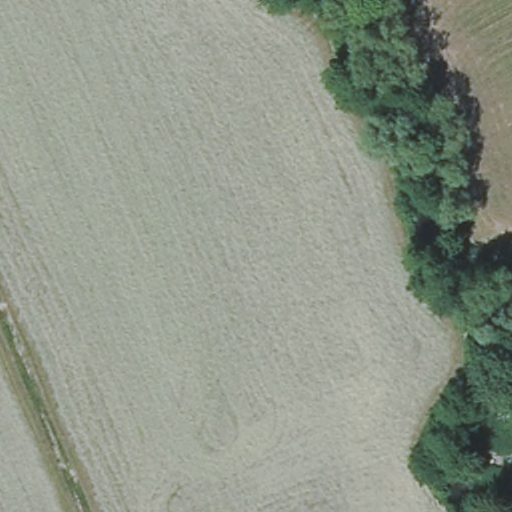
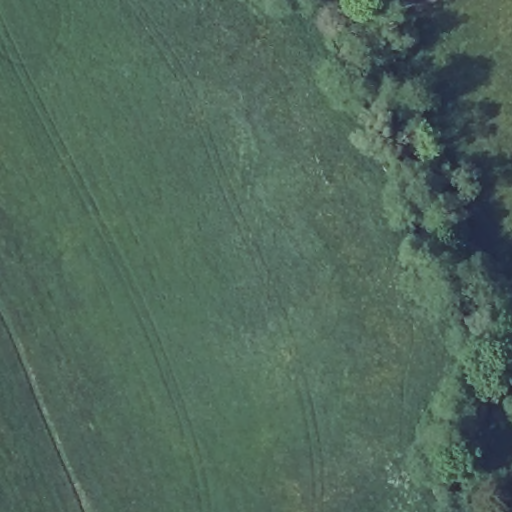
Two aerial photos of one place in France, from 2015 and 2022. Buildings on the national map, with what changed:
unchanged [(349,0),(384,0),(389,26),(357,31),(349,0)]

